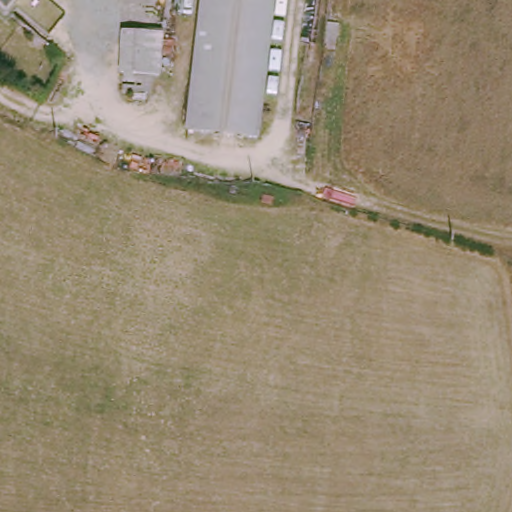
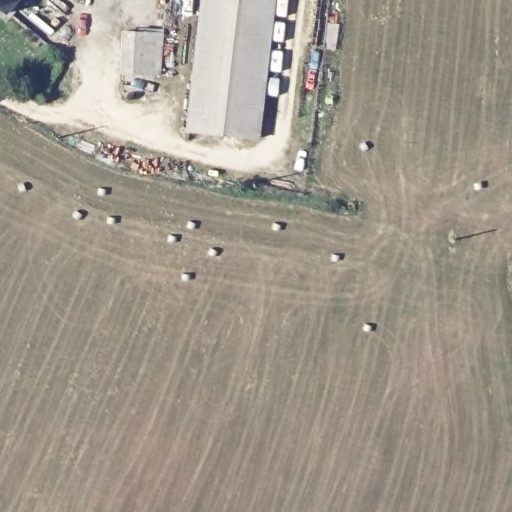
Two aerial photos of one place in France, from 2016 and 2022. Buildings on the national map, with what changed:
unchanged [(0,0),(14,0),(9,6),(0,0)]
unchanged [(255,139),(190,131),(184,129),(198,0),(270,0),(260,80),(255,139)]
unchanged [(165,34),(164,73),(120,68),(123,30),(165,34)]

